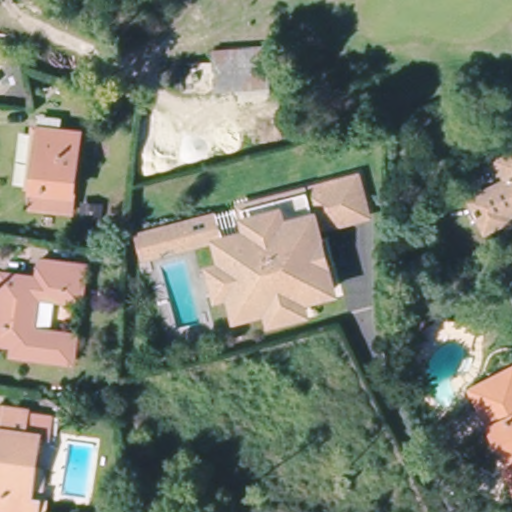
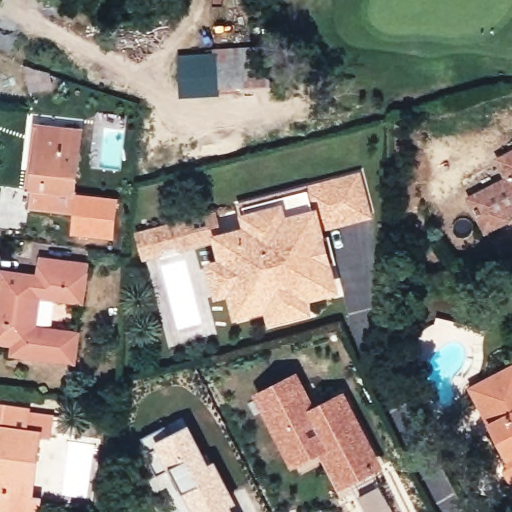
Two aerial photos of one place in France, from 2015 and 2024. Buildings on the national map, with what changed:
unchanged [(217,50),(270,47),(270,91),(218,93),(218,60),(217,50)]
new [(217,54),(218,60),(218,93),(218,97),(180,98),(179,54),(217,54)]
unchanged [(76,135),(66,211),(24,205),(28,166),(32,166),(36,130),(76,135)]
unchanged [(503,215),(482,225),(466,196),(505,175),(494,157),(512,147),(512,204),(500,210),(503,215)]
unchanged [(215,268),(227,265),(221,240),(254,232),(316,217),(310,192),(359,180),(369,215),(320,227),(323,240),(331,238),(338,265),(330,266),(336,291),(240,315),(235,291),(221,295),(215,268)]
new [(115,239),(72,234),(77,192),(120,198),(115,239)]
unchanged [(246,208),(310,192),(316,217),(254,232),(246,208)]
new [(191,226),(143,239),(148,260),(142,261),(135,230),(216,210),(220,226),(210,230),(212,242),(197,246),(191,226)]
unchanged [(197,247),(181,251),(180,250),(164,254),(163,256),(148,260),(143,239),(191,226),(197,247)]
unchanged [(72,343),(70,360),(11,350),(13,340),(0,337),(0,293),(3,271),(39,275),(41,257),(84,263),(81,286),(80,298),(37,292),(32,325),(75,331),(72,343)]
unchanged [(512,364),(512,385),(502,390),(512,412),(512,450),(509,452),(474,383),(512,364)]
new [(297,371),(315,405),(345,390),(385,468),(338,491),(319,456),(291,468),(253,395),(297,371)]
unchanged [(512,385),(512,412),(502,390),(512,385)]
unchanged [(50,415),(46,436),(36,435),(29,496),(37,498),(36,512),(0,512),(0,430),(21,433),(24,412),(50,415)]
new [(190,423),(210,462),(216,460),(237,504),(234,506),(236,512),(192,512),(177,480),(155,441),(190,423)]
unchanged [(512,476),(507,466),(510,457),(509,452),(512,450),(512,476)]
new [(380,485),(393,512),(365,512),(357,496),(380,485)]

